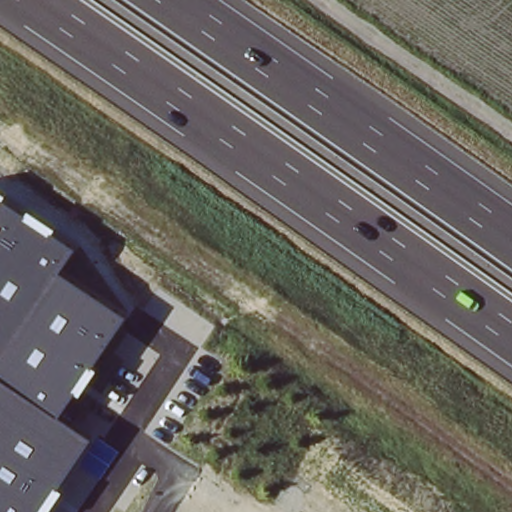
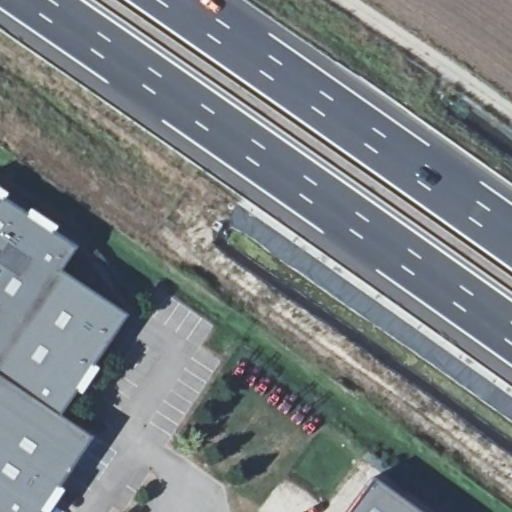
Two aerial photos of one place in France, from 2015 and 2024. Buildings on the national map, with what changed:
unchanged [(3,200),(24,215),(28,210),(55,228),(52,233),(74,248),(60,272),(126,316),(92,366),(96,369),(78,395),(74,393),(58,416),(90,438),(58,488),(62,491),(48,512),(0,512),(0,192),(5,196),(3,200)]
new [(347,512),(371,478),(417,512),(347,512)]

